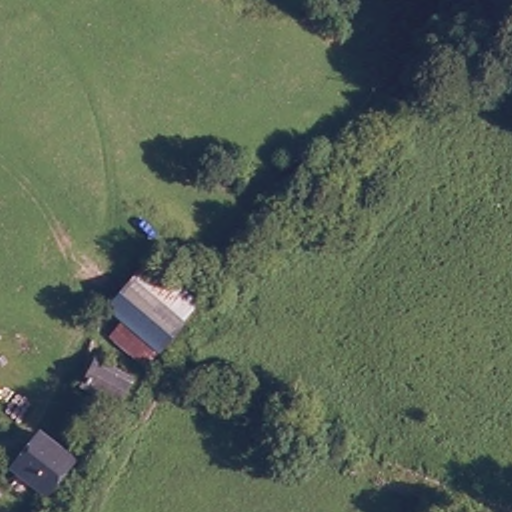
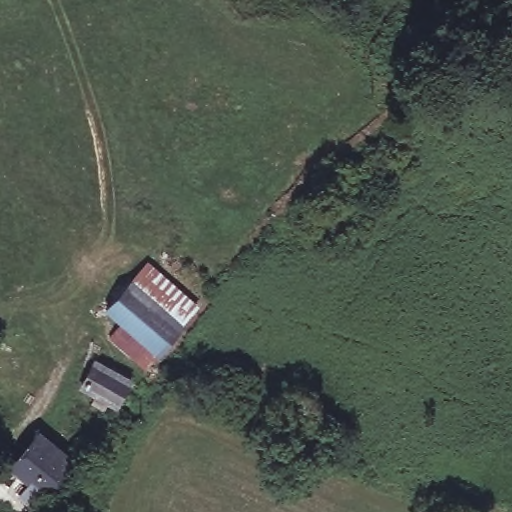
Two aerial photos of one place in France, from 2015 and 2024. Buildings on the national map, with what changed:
unchanged [(196,300),(180,316),(136,276),(131,272),(147,255),(162,268),(196,300)]
unchanged [(116,329),(128,316),(110,298),(136,276),(180,316),(187,321),(150,358),(116,329)]
unchanged [(121,405),(114,401),(105,396),(80,385),(86,372),(92,359),(135,379),(121,405)]
unchanged [(49,492),(35,481),(25,494),(10,483),(20,470),(15,466),(44,429),(79,455),(49,492)]

